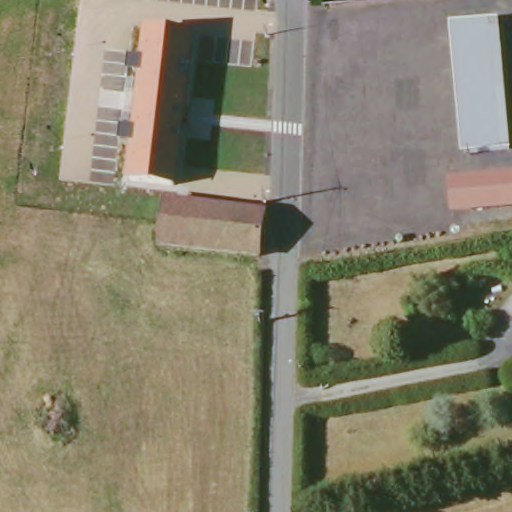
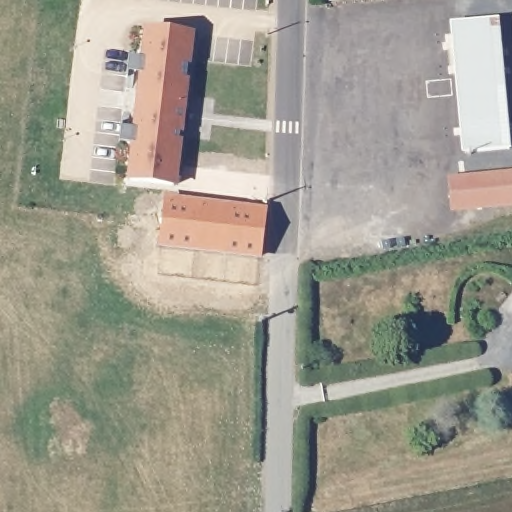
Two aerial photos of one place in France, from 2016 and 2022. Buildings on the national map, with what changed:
unchanged [(455,21),(498,17),(510,147),(467,152),(455,21)]
unchanged [(177,186),(167,185),(130,181),(149,29),(195,33),(192,54),(177,186)]
unchanged [(512,172),(512,203),(472,206),(469,176),(512,172)]
unchanged [(265,208),(260,256),(162,246),(164,220),(166,199),(265,208)]

